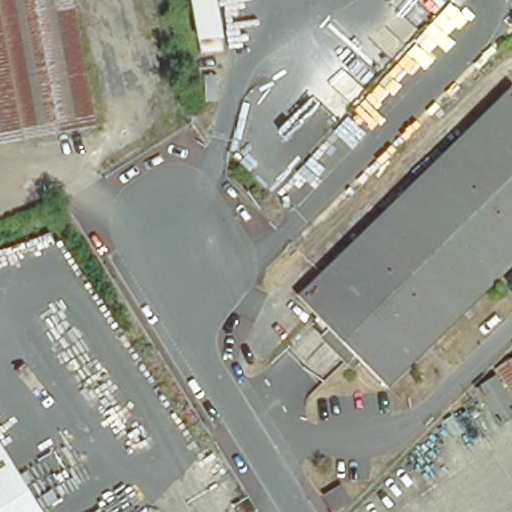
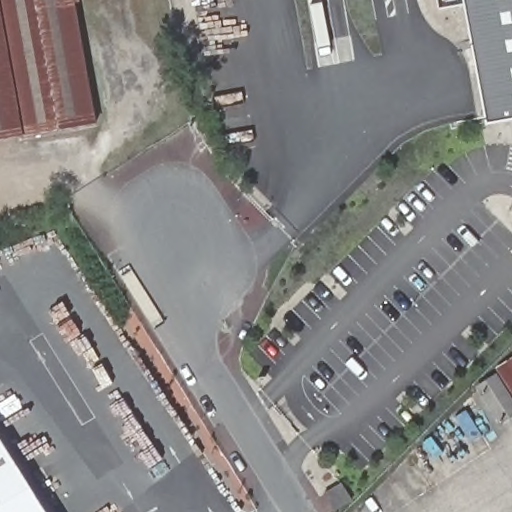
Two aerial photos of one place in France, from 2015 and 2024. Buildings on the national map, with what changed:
unchanged [(92,126),(0,143),(0,0),(77,0),(77,4),(70,5),(92,126)]
new [(462,0),(512,0),(512,120),(485,125),(462,0)]
demolished [(296,289),(512,83),(512,264),(383,384),(296,289)]
unchanged [(512,359),(512,394),(496,369),(512,359)]
unchanged [(474,389),(495,376),(512,403),(512,417),(498,426),(474,389)]
unchanged [(45,512),(0,512),(0,441),(45,512)]
unchanged [(331,511),(320,495),(337,482),(347,499),(331,511)]

